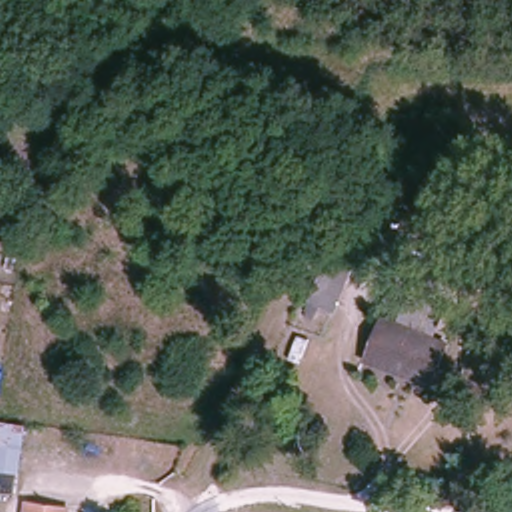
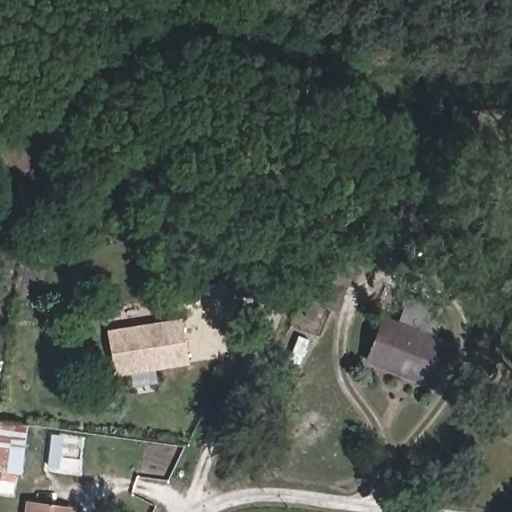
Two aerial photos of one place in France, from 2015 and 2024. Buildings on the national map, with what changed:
unchanged [(308,300),(327,257),(353,268),(337,313),(308,300)]
unchanged [(370,357),(384,317),(397,323),(432,337),(447,343),(436,375),(432,385),(401,371),(370,357)]
new [(114,377),(106,332),(181,319),(188,365),(114,377)]
unchanged [(0,423),(26,426),(20,474),(0,471),(0,423)]
unchanged [(72,505),(72,512),(27,512),(28,500),(72,505)]

